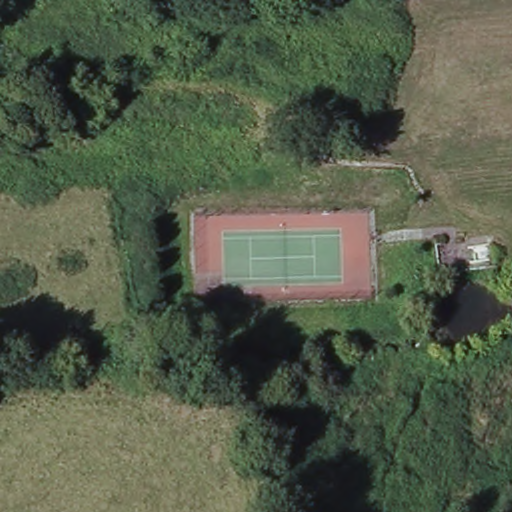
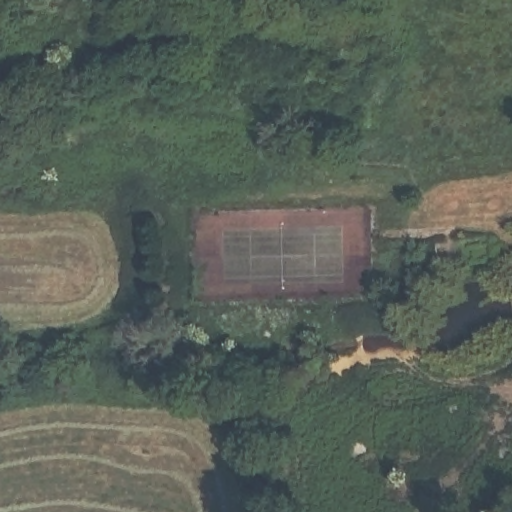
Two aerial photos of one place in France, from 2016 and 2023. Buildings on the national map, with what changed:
unchanged [(493,240),(495,261),(471,265),(467,245),(493,240)]

